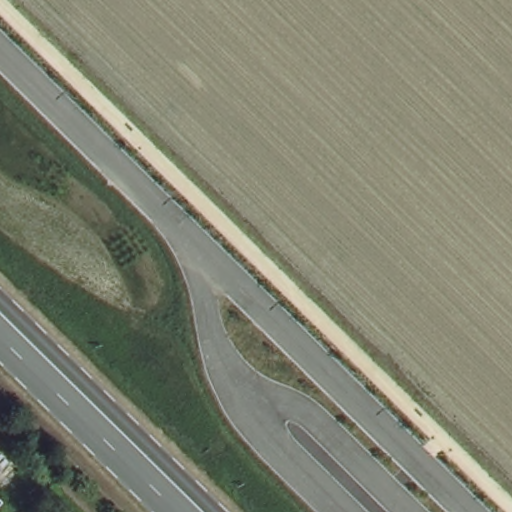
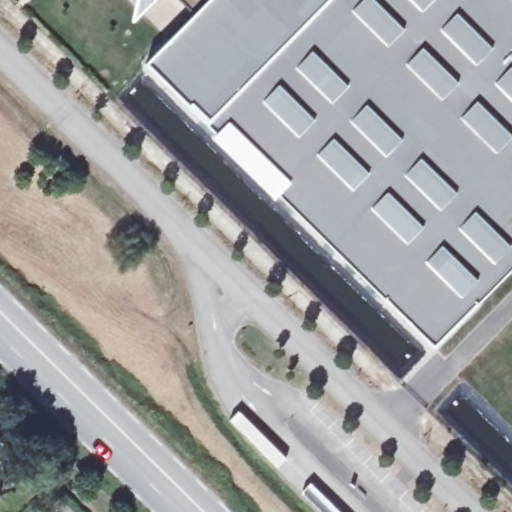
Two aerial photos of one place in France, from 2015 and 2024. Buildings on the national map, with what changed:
new [(156,0),(134,22),(138,0),(156,0)]
new [(147,65),(195,17),(178,0),(512,0),(512,271),(435,348),(147,65)]

